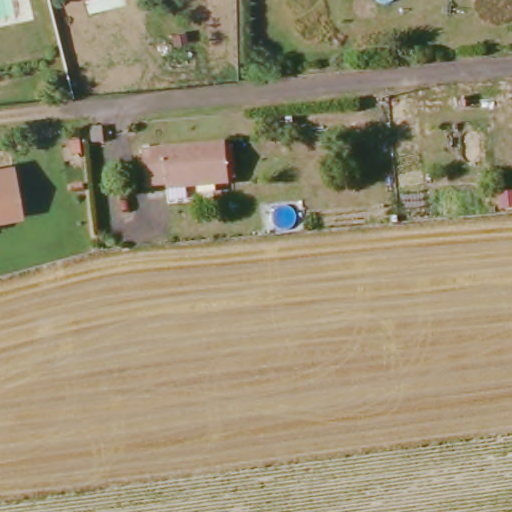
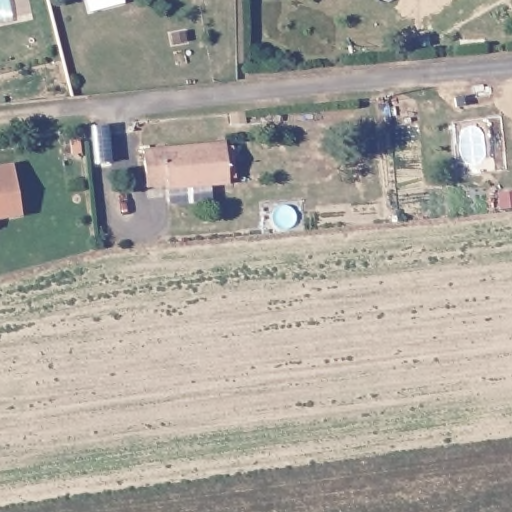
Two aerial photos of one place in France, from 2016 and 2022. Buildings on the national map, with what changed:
unchanged [(223,185),(190,188),(189,180),(142,183),(140,147),(221,142),(223,185)]
unchanged [(7,169),(16,216),(0,219),(0,170),(7,169)]

